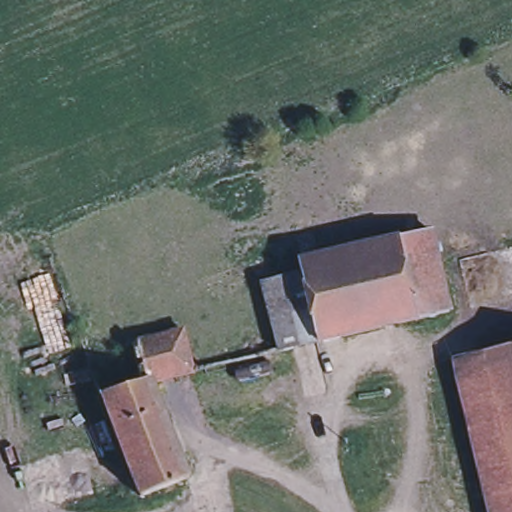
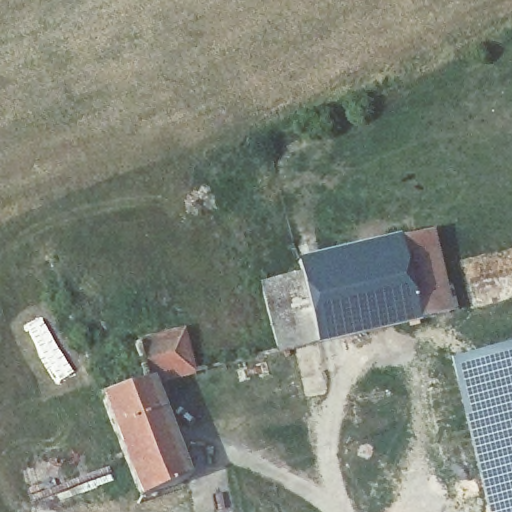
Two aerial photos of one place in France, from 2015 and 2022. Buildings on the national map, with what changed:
unchanged [(298,262),(430,230),(449,313),(317,344),(300,272),(298,262)]
unchanged [(246,265),(254,285),(214,300),(206,277),(246,265)]
unchanged [(279,353),(261,282),(300,272),(317,344),(279,353)]
unchanged [(154,349),(91,370),(83,350),(146,326),(154,349)]
unchanged [(182,340),(194,382),(151,393),(188,490),(141,506),(88,371),(91,370),(154,349),(182,340)]
unchanged [(512,348),(512,488),(480,358),(479,356),(512,348)]
unchanged [(480,358),(512,488),(512,512),(488,512),(454,364),(480,358)]

